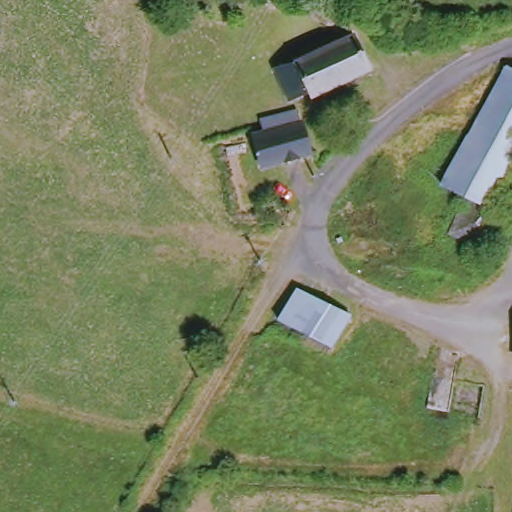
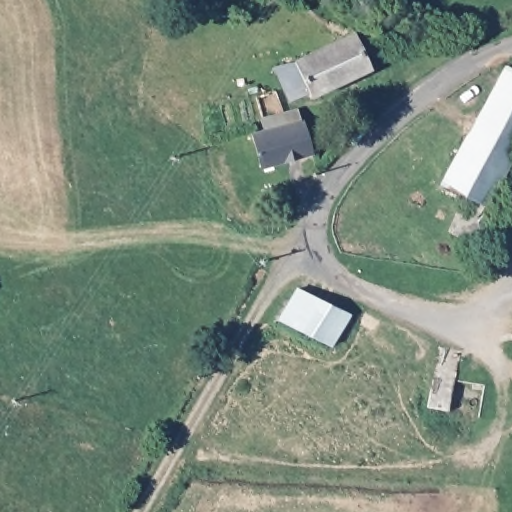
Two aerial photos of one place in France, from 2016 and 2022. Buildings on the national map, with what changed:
unchanged [(342,37),(351,34),(367,70),(365,74),(307,99),(305,95),(286,103),(282,93),(272,70),(342,37)]
unchanged [(481,201),(501,211),(482,246),(476,242),(447,227),(465,194),(437,176),(502,60),(512,65),(512,147),(481,201)]
unchanged [(249,137),(258,134),(256,122),(292,112),(297,125),(307,157),(260,170),(249,137)]
unchanged [(289,306),(298,286),(310,292),(325,299),(352,312),(336,345),(282,319),(289,306)]

